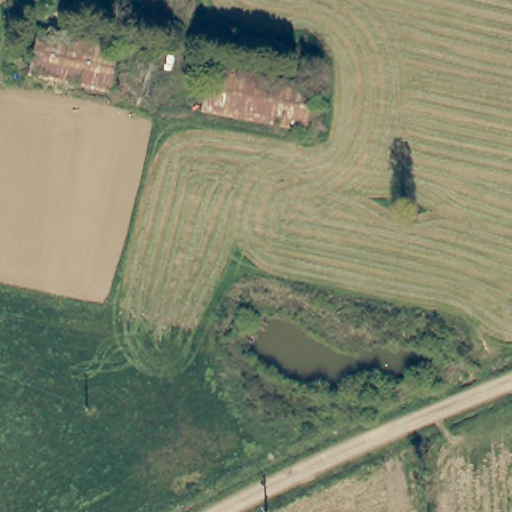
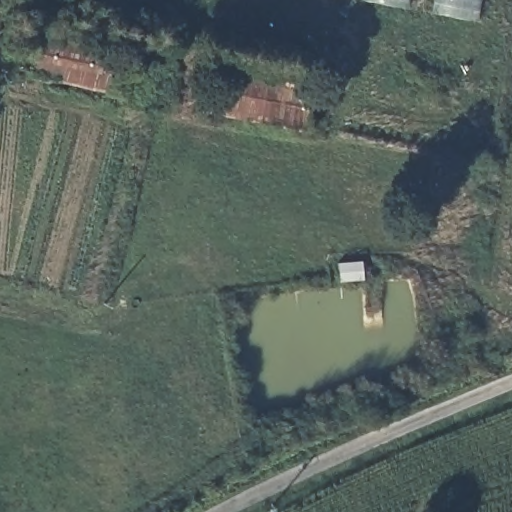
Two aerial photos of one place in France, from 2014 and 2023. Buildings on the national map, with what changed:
new [(364,1),(365,0),(413,0),(411,9),(364,1)]
new [(434,14),(437,0),(488,0),(484,23),(434,14)]
unchanged [(120,74),(118,89),(58,78),(33,74),(44,24),(127,43),(120,74)]
unchanged [(199,104),(209,62),(210,58),(225,61),(314,79),(304,127),(199,104)]

